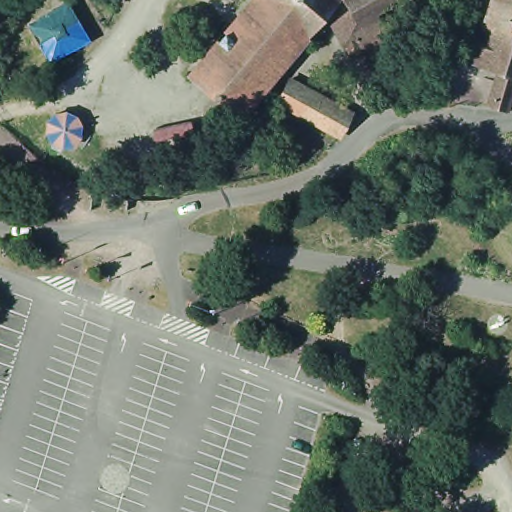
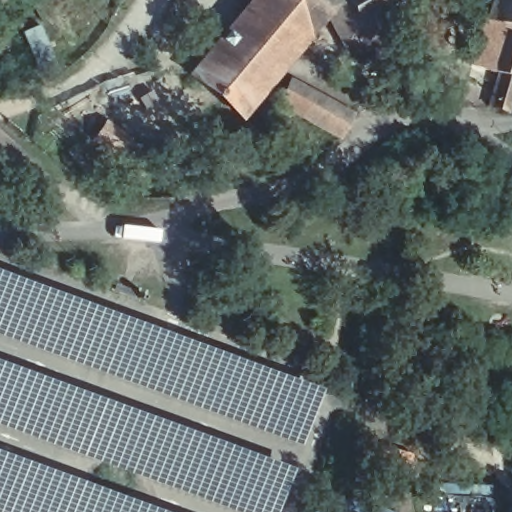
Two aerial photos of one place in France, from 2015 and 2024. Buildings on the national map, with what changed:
unchanged [(263,0),(307,37),(257,96),(239,117),(190,75),(202,60),(251,0),(263,0)]
unchanged [(307,37),(263,0),(337,0),(330,10),(307,37)]
unchanged [(348,44),(344,45),(330,10),(337,0),(400,0),(391,5),(390,3),(374,11),(381,25),(386,35),(369,46),(351,54),(348,44)]
unchanged [(491,0),(512,0),(512,28),(485,19),(491,0)]
unchanged [(497,71),(470,62),(485,19),(512,28),(512,93),(506,110),(488,102),(497,71)]
unchanged [(288,79),(354,115),(341,135),(277,101),(288,79)]
new [(322,390),(302,446),(0,335),(0,272),(322,390)]
new [(139,411),(148,419),(293,471),(277,512),(235,512),(0,425),(0,362),(138,415),(139,411)]
new [(154,512),(0,512),(0,453),(154,512)]
new [(492,512),(431,512),(432,480),(493,481),(492,512)]

